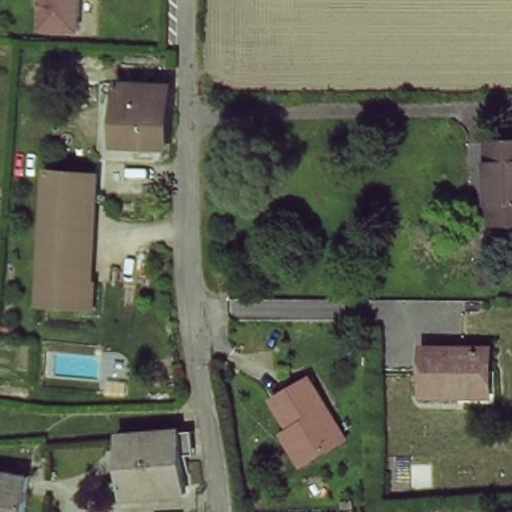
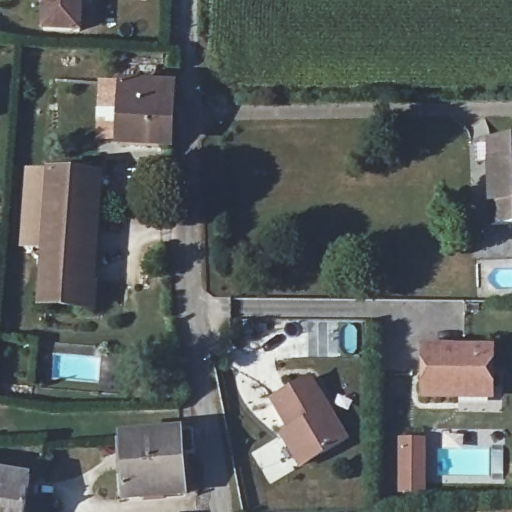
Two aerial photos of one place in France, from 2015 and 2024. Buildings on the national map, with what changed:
unchanged [(41,22),(42,0),(79,0),(78,24),(41,22)]
unchanged [(118,140),(121,83),(176,87),(175,143),(118,140)]
unchanged [(494,140),(512,140),(512,223),(495,223),(494,140)]
unchanged [(89,308),(39,304),(49,168),(72,170),(99,173),(89,308)]
unchanged [(458,394),(427,393),(427,346),(491,349),(491,385),(492,396),(458,394)]
unchanged [(286,432),(295,425),(275,394),(311,374),(349,433),(313,453),(304,459),(286,432)]
unchanged [(181,434),(186,487),(127,492),(123,439),(181,434)]
new [(426,493),(399,493),(399,437),(427,437),(426,493)]
unchanged [(33,474),(26,512),(0,512),(0,468),(33,474)]

